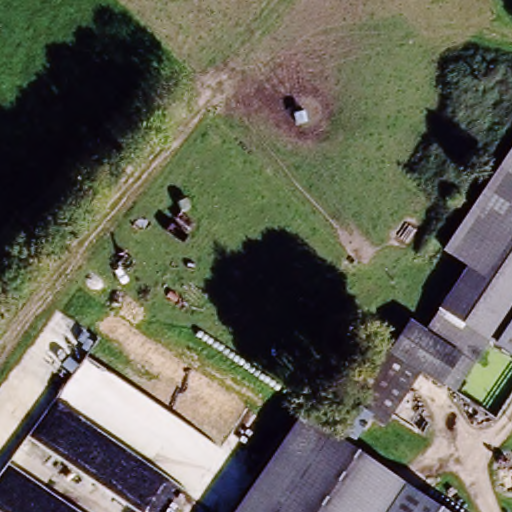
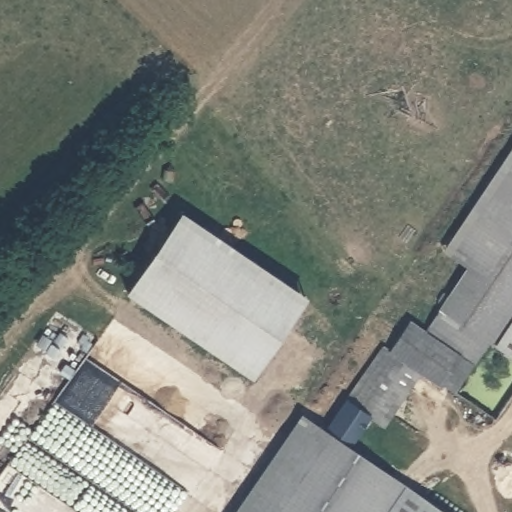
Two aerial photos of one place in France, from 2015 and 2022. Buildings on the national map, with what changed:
new [(512,145),(512,196),(466,266),(442,251),(512,145)]
unchanged [(487,342),(454,392),(441,384),(439,387),(402,363),(347,445),(448,512),(235,512),(300,414),(326,431),(381,347),(387,352),(407,321),(424,331),(438,308),(437,308),(512,196),(512,359),(487,342)]
new [(308,297),(252,378),(126,292),(182,211),(308,297)]

